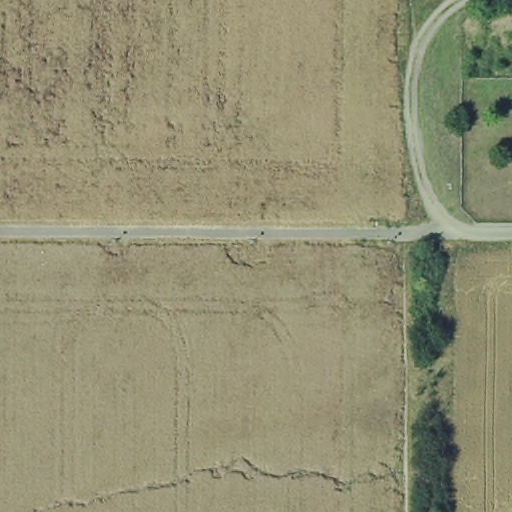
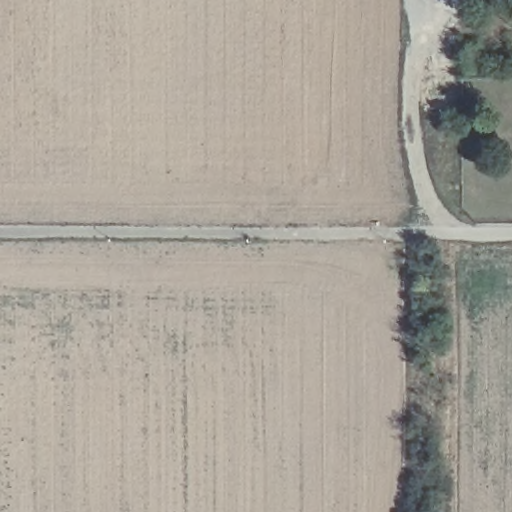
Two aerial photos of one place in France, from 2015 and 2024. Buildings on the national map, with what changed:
[]

